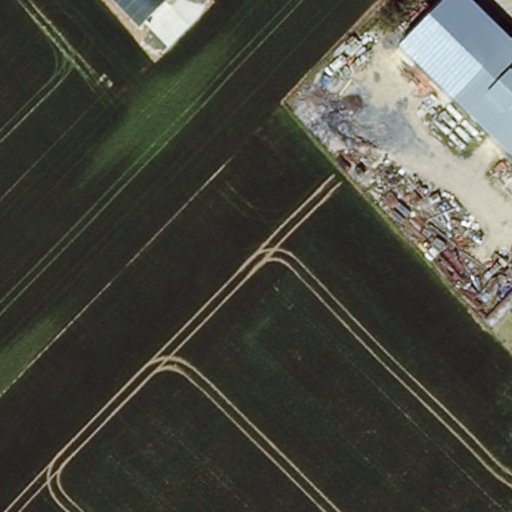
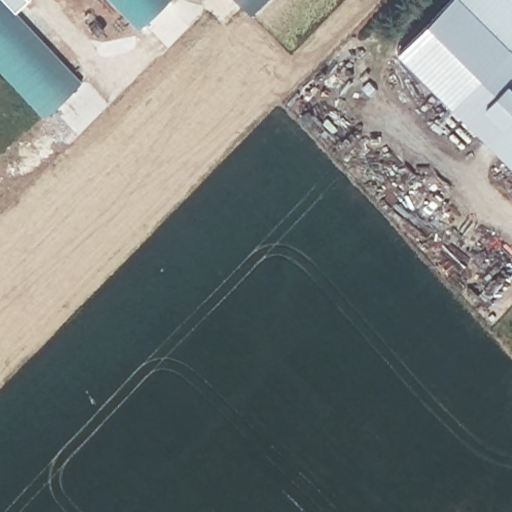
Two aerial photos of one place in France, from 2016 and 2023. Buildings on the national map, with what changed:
new [(0,69),(0,0),(29,0),(16,12),(84,81),(46,117),(0,69)]
unchanged [(109,0),(172,0),(138,31),(109,0)]
unchanged [(454,103),(399,49),(448,0),(466,0),(512,44),(454,103)]
unchanged [(454,103),(512,44),(512,159),(454,103)]

